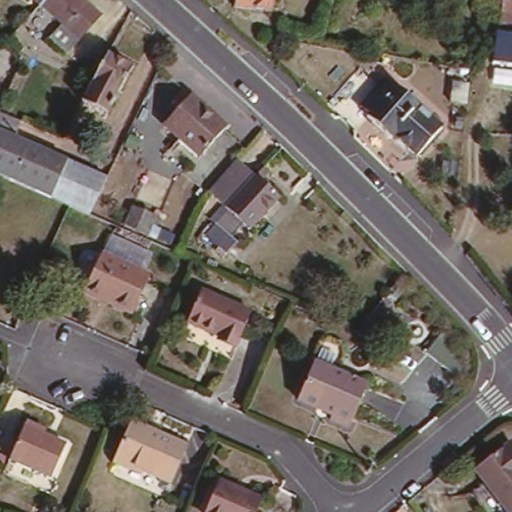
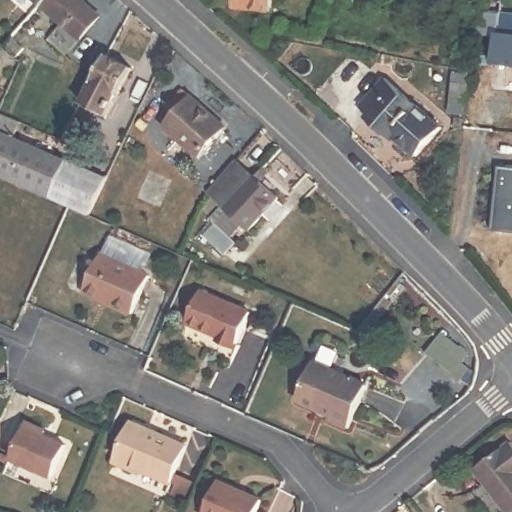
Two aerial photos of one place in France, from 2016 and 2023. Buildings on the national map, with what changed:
unchanged [(46,0),(43,4),(38,0),(46,0)]
unchanged [(83,32),(67,54),(49,40),(64,22),(43,4),(46,0),(85,0),(100,13),(83,32)]
unchanged [(230,1),(230,0),(269,0),(269,5),(230,1)]
unchanged [(499,32),(474,34),(476,9),(485,9),(485,0),(512,0),(512,33),(499,32)]
unchanged [(499,32),(512,33),(512,64),(494,62),(499,32)]
unchanged [(26,49),(19,56),(5,44),(13,35),(26,49)]
unchanged [(133,61),(106,109),(81,95),(108,48),(133,61)]
unchanged [(384,62),(376,60),(378,55),(378,50),(386,51),(384,62)]
unchanged [(439,126),(411,154),(389,130),(386,134),(366,113),(369,110),(359,100),(387,74),(439,126)]
unchanged [(453,104),(456,81),(470,83),(467,105),(453,104)]
unchanged [(224,126),(199,154),(163,124),(174,111),(166,105),(181,89),(224,126)]
unchanged [(0,174),(0,109),(1,109),(21,119),(14,135),(53,152),(64,156),(49,195),(0,174)]
unchanged [(215,194),(236,170),(248,180),(276,150),(285,140),(292,147),(283,156),(299,171),(246,229),(224,209),(229,204),(215,194)]
unchanged [(109,176),(109,177),(90,213),(71,204),(49,195),(64,156),(109,176)]
new [(512,168),(512,230),(494,229),(499,167),(512,168)]
unchanged [(155,204),(146,229),(123,219),(131,194),(155,204)]
unchanged [(89,279),(103,248),(150,268),(134,307),(101,293),(85,286),(89,279)]
unchanged [(246,305),(233,335),(184,314),(198,285),(246,305)]
unchanged [(388,296),(395,302),(369,335),(360,332),(388,296)]
unchanged [(365,381),(347,424),(327,416),(329,408),(296,395),(311,358),(365,381)]
unchanged [(43,431),(63,439),(49,472),(8,454),(22,418),(44,426),(43,431)]
unchanged [(127,419),(182,442),(164,486),(134,474),(137,469),(110,458),(127,419)]
unchanged [(512,444),(512,507),(509,510),(472,464),(507,437),(512,444)]
unchanged [(0,451),(8,454),(3,464),(0,463),(0,451)]
unchanged [(255,492),(246,512),(207,512),(198,508),(212,474),(255,492)]

